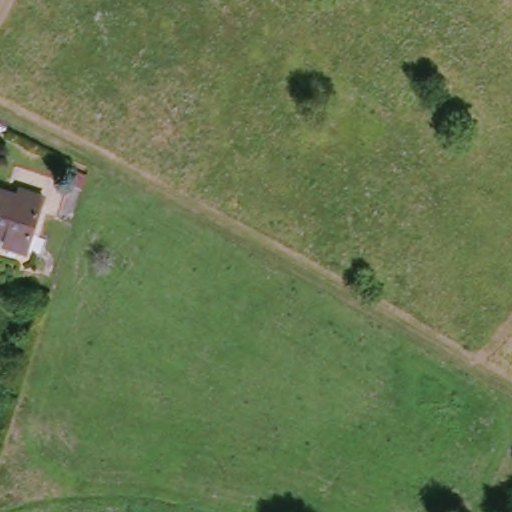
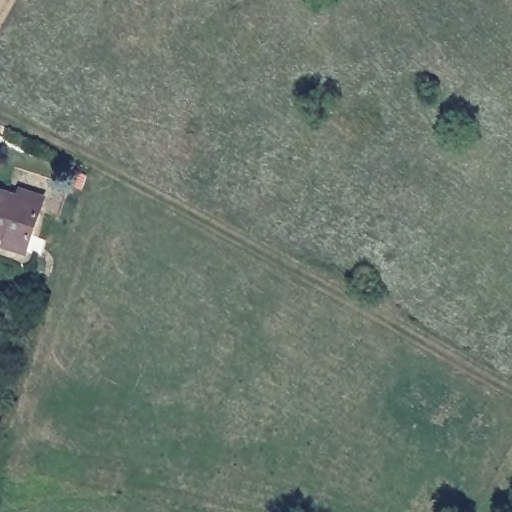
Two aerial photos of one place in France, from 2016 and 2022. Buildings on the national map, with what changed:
unchanged [(0,244),(2,237),(0,236),(0,191),(38,206),(23,252),(0,244)]

